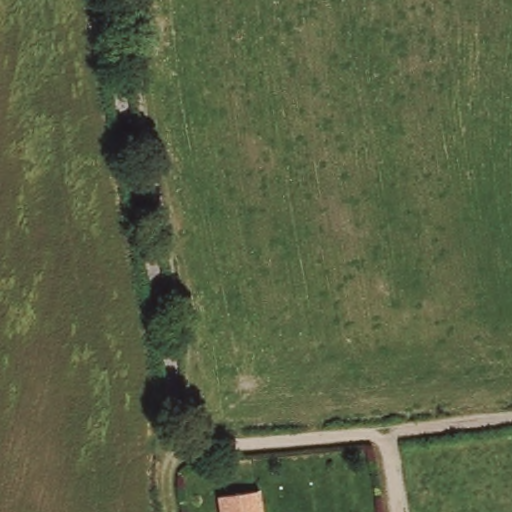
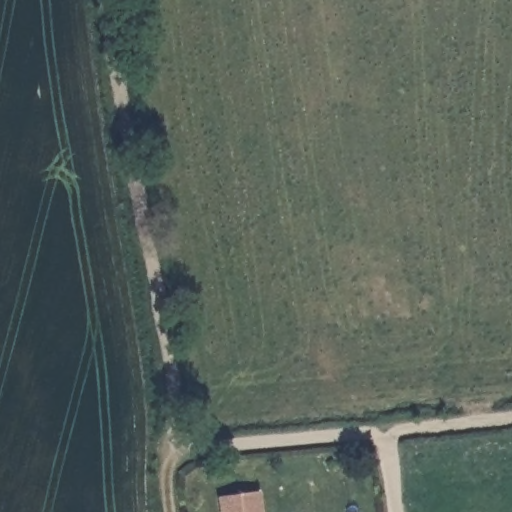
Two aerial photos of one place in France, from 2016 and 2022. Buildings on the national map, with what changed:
unchanged [(216,491),(258,486),(261,512),(219,512),(216,491)]

